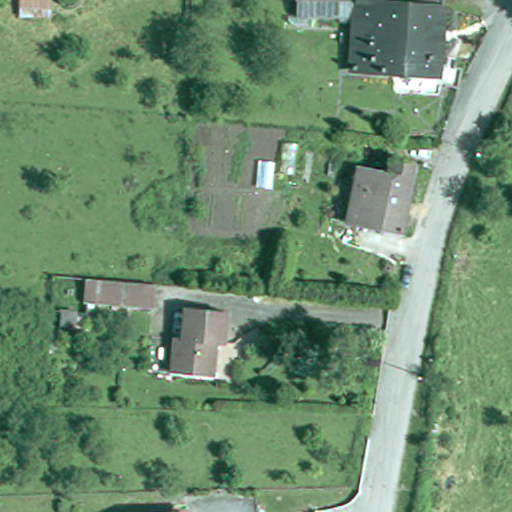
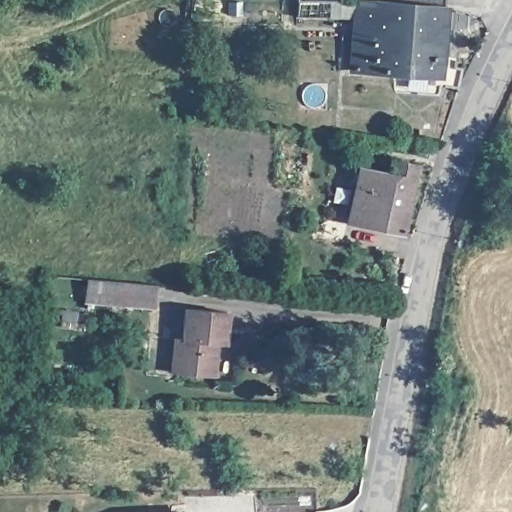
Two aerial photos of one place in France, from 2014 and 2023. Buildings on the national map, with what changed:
unchanged [(351,75),(356,0),(444,0),(438,81),(351,75)]
unchanged [(339,23),(297,21),(296,4),(339,4),(339,23)]
unchanged [(420,168),(405,237),(353,228),(364,171),(394,177),(398,164),(420,168)]
unchanged [(154,285),(152,308),(86,303),(88,279),(117,282),(122,282),(154,285)]
unchanged [(232,312),(229,344),(221,343),(219,376),(177,372),(180,339),(187,340),(190,307),(232,312)]
unchanged [(77,312),(75,327),(61,325),(63,310),(77,312)]

